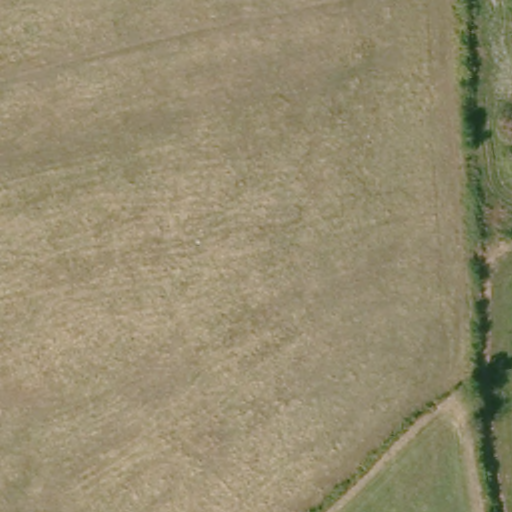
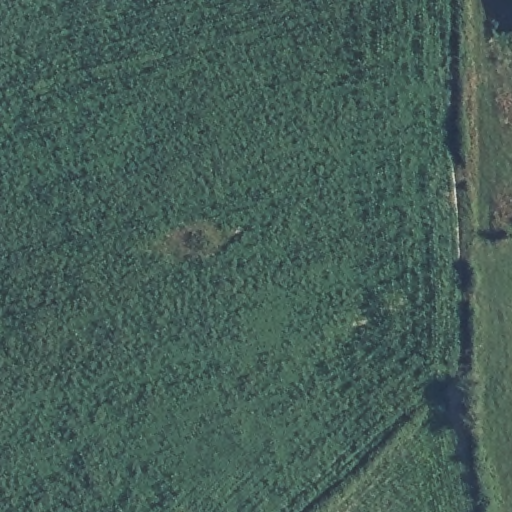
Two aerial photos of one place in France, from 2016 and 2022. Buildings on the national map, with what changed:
[]

